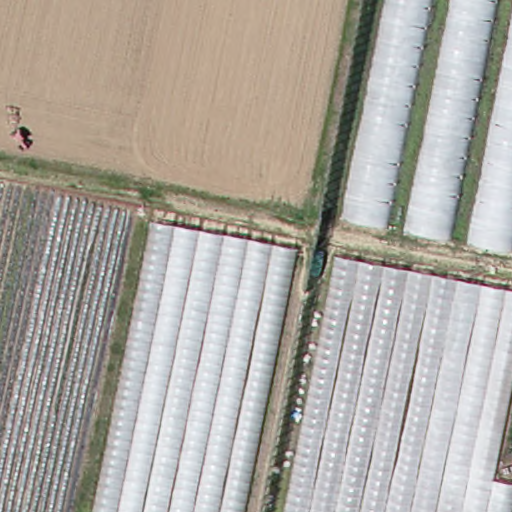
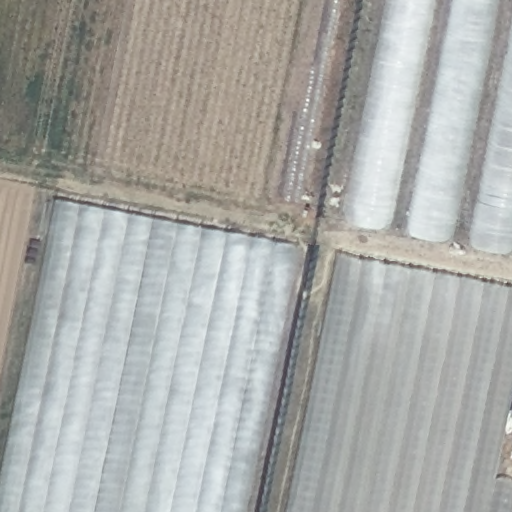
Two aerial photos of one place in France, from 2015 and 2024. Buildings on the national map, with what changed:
unchanged [(345,215),(389,0),(435,0),(388,227),(345,215)]
unchanged [(452,238),(406,229),(454,0),(503,0),(452,238)]
unchanged [(512,73),(512,247),(479,240),(512,73)]
new [(0,512),(0,468),(53,203),(154,220),(96,512),(0,512)]
unchanged [(247,512),(96,512),(154,220),(299,248),(247,512)]
unchanged [(512,396),(496,480),(512,484),(512,512),(290,512),(341,256),(512,290),(512,396)]

